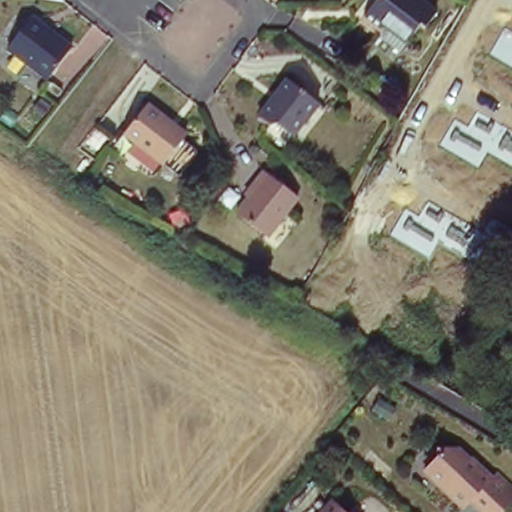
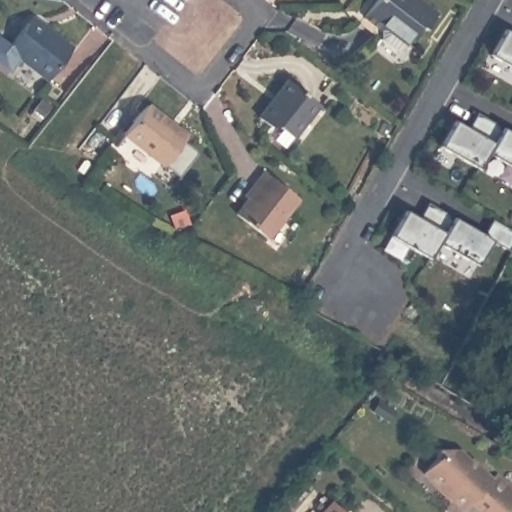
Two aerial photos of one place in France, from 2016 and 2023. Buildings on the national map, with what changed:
unchanged [(377,0),(426,0),(443,13),(429,29),(425,25),(415,34),(406,45),(390,32),(390,21),(371,7),(377,0)]
unchanged [(44,78),(7,48),(25,23),(31,17),(43,25),(70,46),(44,78)]
new [(488,55),(504,29),(512,34),(512,68),(488,55)]
unchanged [(313,108),(286,139),(269,126),(263,131),(250,121),(280,84),(313,108)]
unchanged [(185,137),(162,167),(123,137),(146,109),(185,137)]
new [(477,169),(438,146),(453,120),(467,128),(476,112),(501,127),(486,153),(477,169)]
new [(512,133),(512,168),(486,153),(501,127),(512,133)]
unchanged [(296,196),(265,235),(234,211),(255,185),(251,181),(260,168),(296,196)]
new [(452,217),(428,258),(389,236),(404,210),(417,218),(427,202),(452,217)]
new [(437,243),(452,217),(482,234),(491,218),(512,231),(512,240),(506,250),(490,240),(475,265),(437,243)]
unchanged [(449,503),(422,479),(426,474),(430,469),(433,465),(437,457),(443,453),(450,456),(453,452),(468,466),(472,462),(487,476),(494,474),(512,491),(512,503),(503,512),(477,512),(470,506),(464,512),(460,512),(449,503)]
unchanged [(345,512),(327,512),(335,503),(345,512)]

